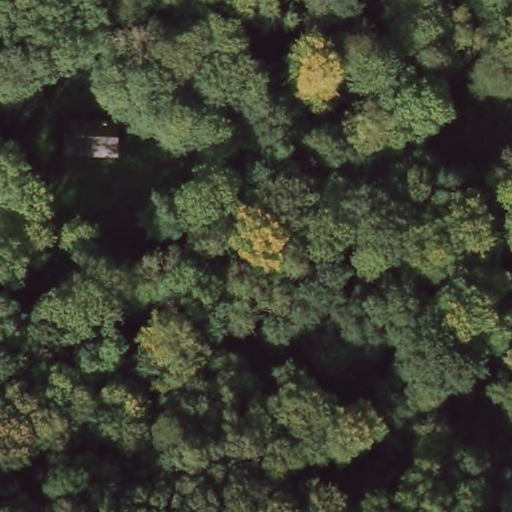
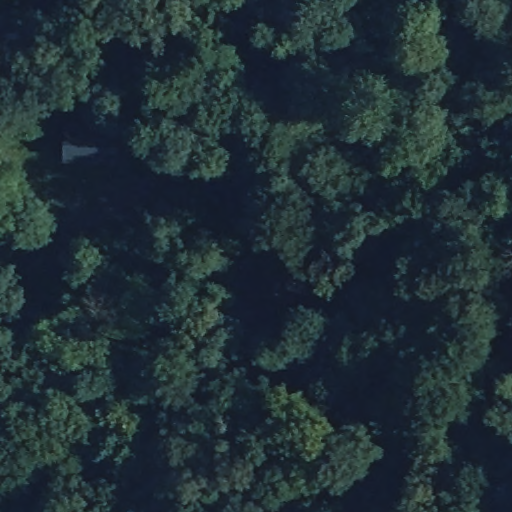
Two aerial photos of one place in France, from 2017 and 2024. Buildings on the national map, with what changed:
unchanged [(70,160),(68,137),(110,138),(110,162),(70,160)]

